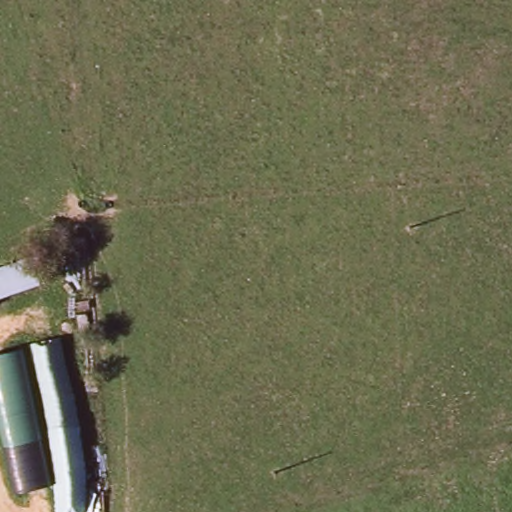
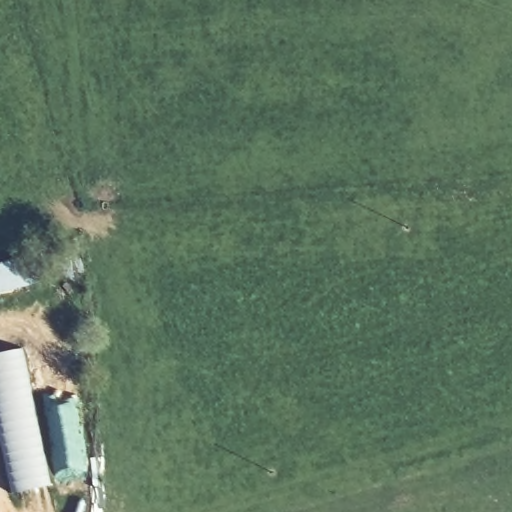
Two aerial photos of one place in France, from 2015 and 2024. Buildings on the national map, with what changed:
unchanged [(41,253),(50,280),(0,299),(0,268),(41,253)]
unchanged [(24,347),(53,484),(14,492),(0,433),(0,353),(24,347)]

